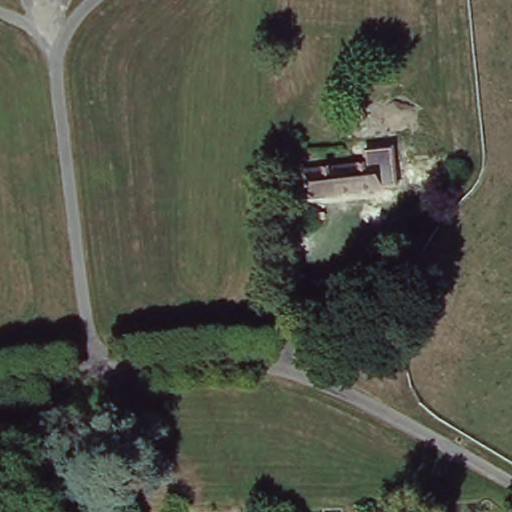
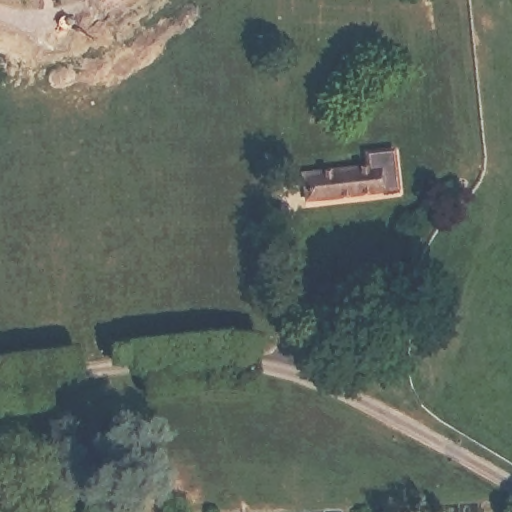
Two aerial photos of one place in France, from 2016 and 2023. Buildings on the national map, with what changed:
unchanged [(364,148),(392,145),(393,160),(396,188),(308,195),(303,166),(365,162),(364,148)]

